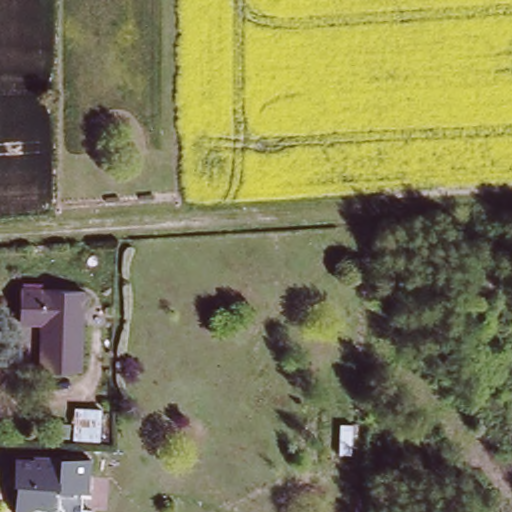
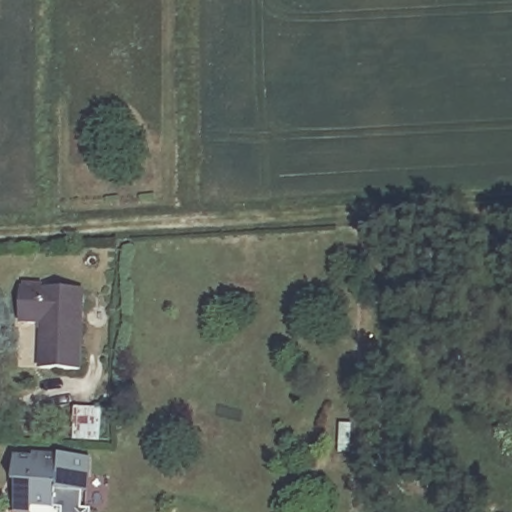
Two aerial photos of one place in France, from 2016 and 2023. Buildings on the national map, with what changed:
unchanged [(85,289),(82,366),(43,365),(45,321),(24,320),(25,287),(85,289)]
unchanged [(105,410),(104,442),(73,440),(75,405),(105,410)]
unchanged [(90,460),(90,486),(85,487),(84,506),(92,506),(92,512),(62,512),(62,511),(17,509),(19,457),(90,460)]

